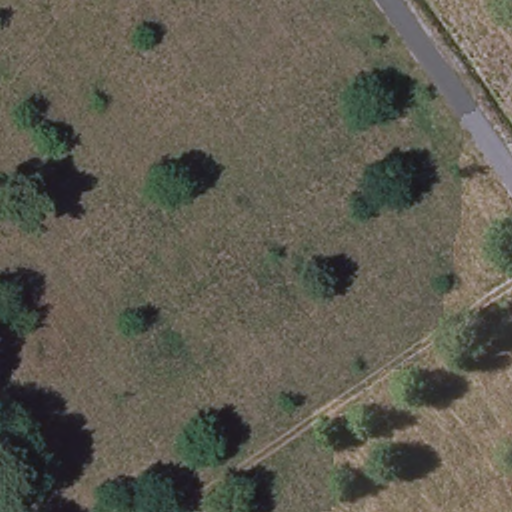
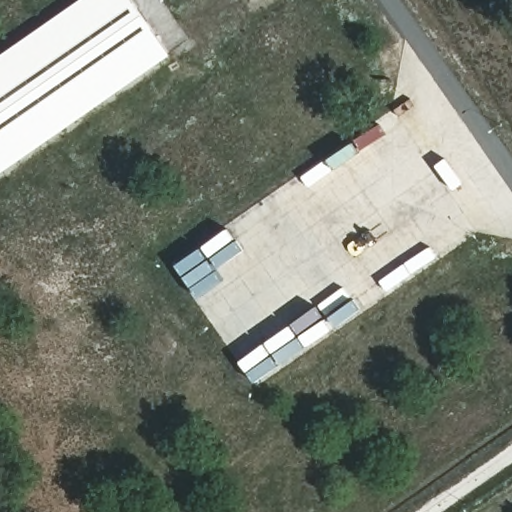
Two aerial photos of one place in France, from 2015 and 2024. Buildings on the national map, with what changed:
new [(176,56),(0,176),(0,56),(81,0),(136,0),(176,56)]

